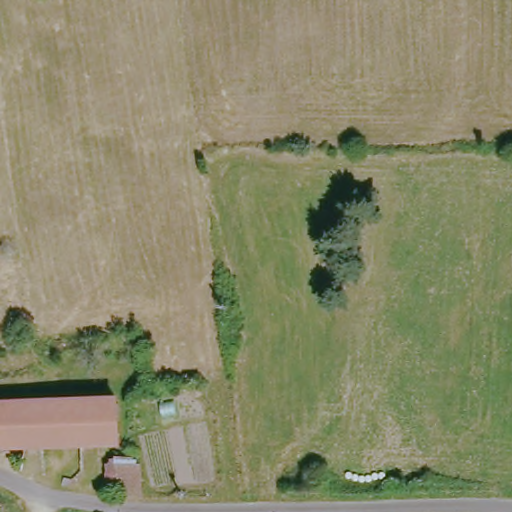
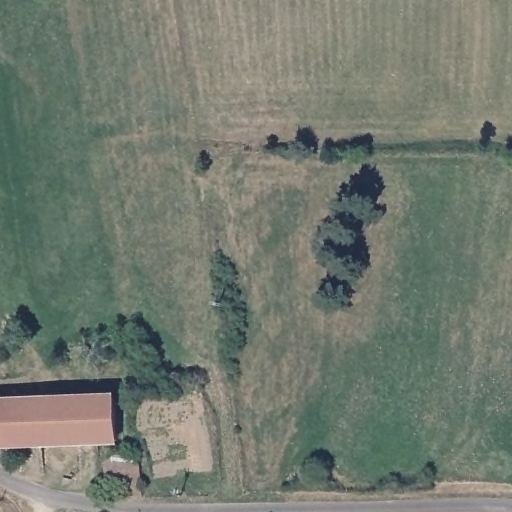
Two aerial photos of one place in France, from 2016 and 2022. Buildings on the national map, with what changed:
unchanged [(125,442),(0,449),(0,406),(123,402),(125,442)]
unchanged [(112,503),(113,463),(131,463),(130,504),(112,503)]

